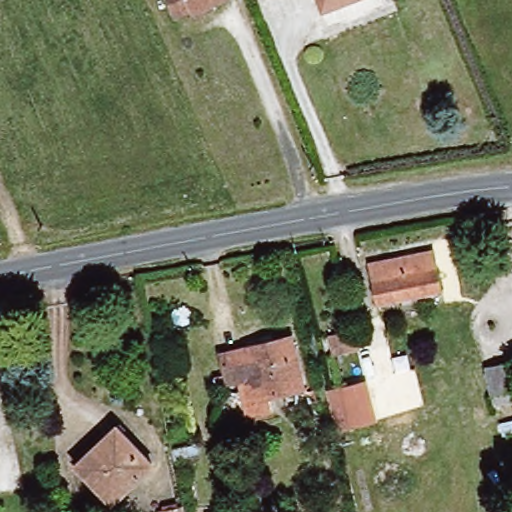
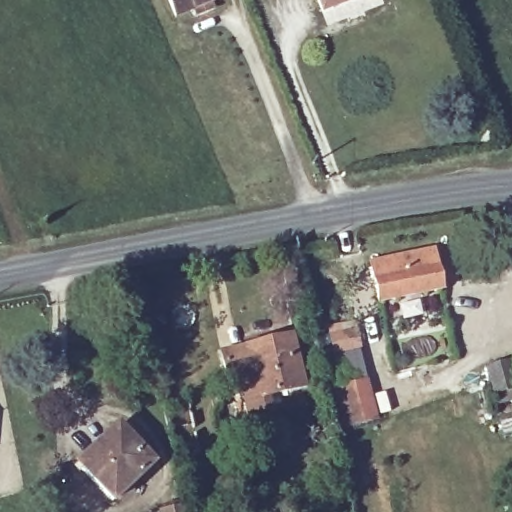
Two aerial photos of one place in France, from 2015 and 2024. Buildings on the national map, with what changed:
unchanged [(194,15),(192,9),(174,17),(167,0),(215,0),(209,3),(212,8),(194,15)]
unchanged [(318,0),(349,0),(321,11),(318,0)]
unchanged [(338,245),(340,258),(296,266),(293,253),(338,245)]
unchanged [(440,289),(377,302),(370,263),(432,251),(440,289)]
unchanged [(349,331),(353,349),(326,355),(322,338),(349,331)]
unchanged [(303,387),(266,396),(269,409),(247,415),(238,379),(226,382),(219,353),(244,347),(259,344),(291,336),(303,387)]
unchanged [(490,372),(498,371),(512,367),(512,395),(504,397),(497,399),(490,372)]
unchanged [(111,502),(86,475),(76,465),(116,426),(126,437),(152,463),(111,502)]
unchanged [(182,506),(184,512),(159,512),(159,511),(182,506)]

